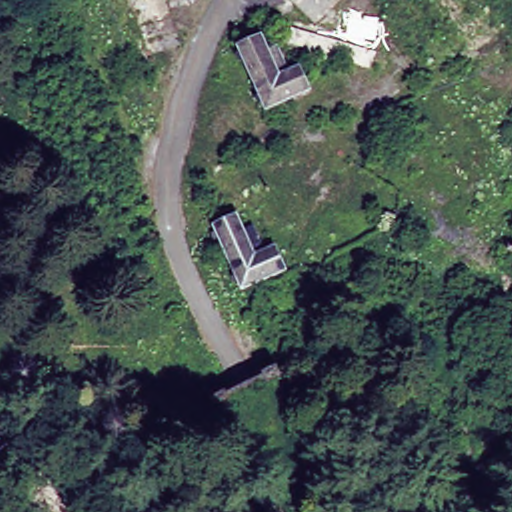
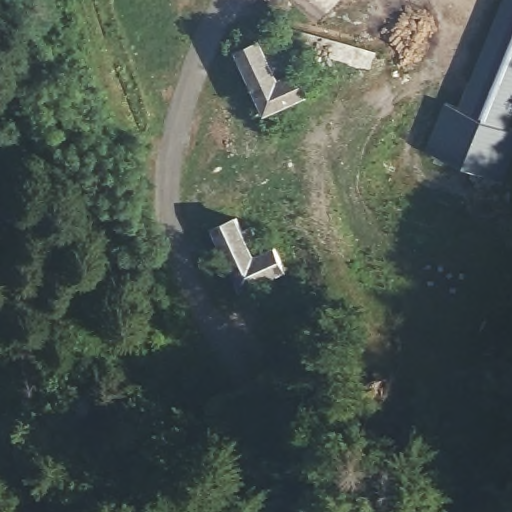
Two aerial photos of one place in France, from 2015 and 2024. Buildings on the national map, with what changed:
new [(512,131),(512,159),(502,182),(427,150),(445,102),(458,109),(504,0),(512,0),(512,121),(508,130),(512,131)]
unchanged [(313,86),(272,108),(240,46),(260,33),(269,46),(277,41),(293,67),(302,63),(313,86)]
unchanged [(244,227),(255,222),(262,244),(272,242),(282,265),(241,282),(215,219),(236,210),(244,227)]

